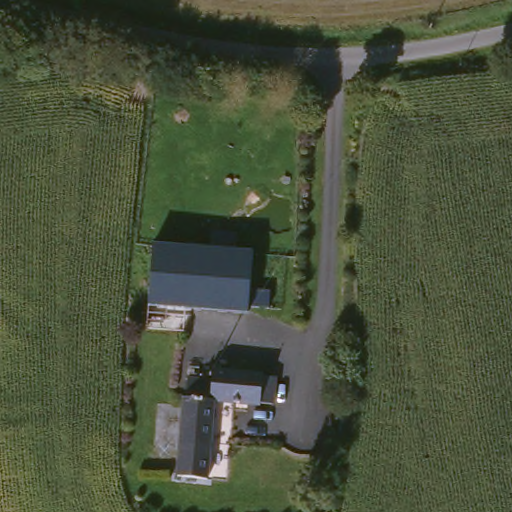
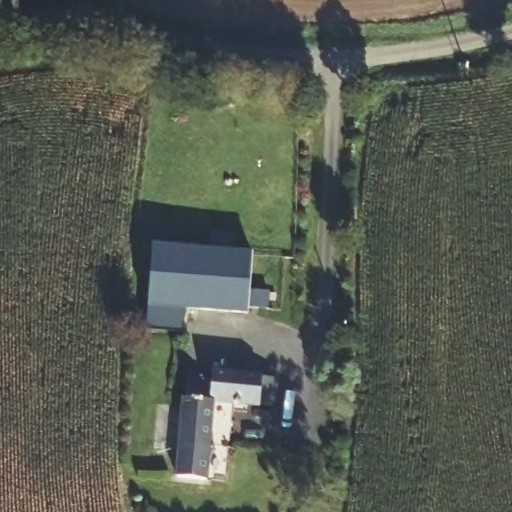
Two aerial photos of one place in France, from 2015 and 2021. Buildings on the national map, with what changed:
unchanged [(249,245),(247,306),(146,302),(149,242),(249,245)]
unchanged [(273,398),(214,394),(207,472),(181,470),(188,372),(216,373),(216,365),(275,369),(273,398)]

